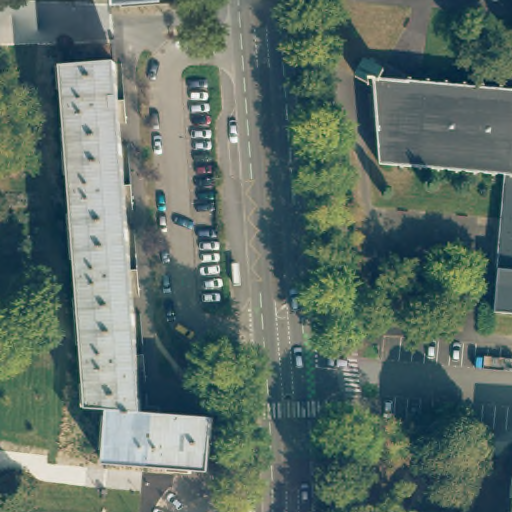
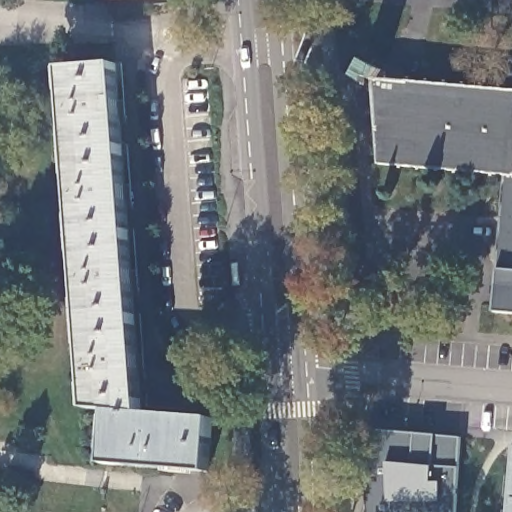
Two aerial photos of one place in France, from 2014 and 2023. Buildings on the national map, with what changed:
unchanged [(209,417),(204,471),(170,468),(100,461),(105,408),(83,406),(58,65),(83,63),(111,61),(138,410),(152,412),(209,417)]
unchanged [(380,164),(373,87),(356,78),(365,61),(383,70),(380,78),(512,90),(512,177),(506,176),(380,164)]
unchanged [(512,314),(494,313),(506,176),(512,177),(512,314)]
new [(365,438),(365,433),(369,430),(433,435),(460,438),(456,512),(367,512),(365,438)]

